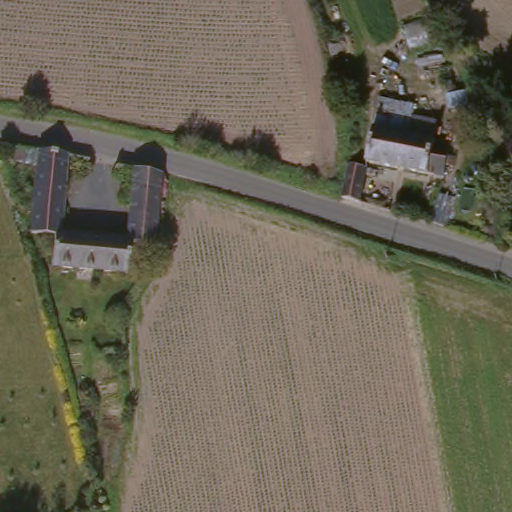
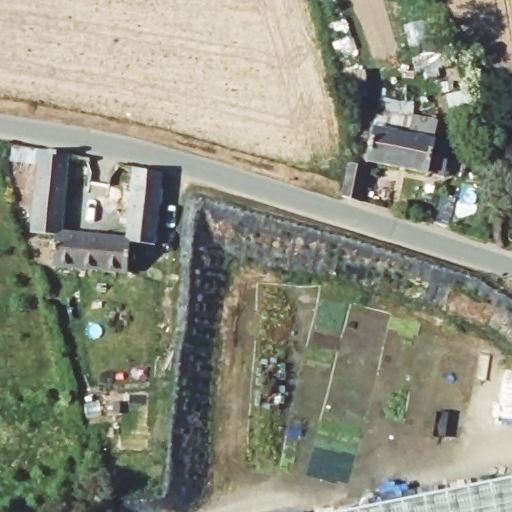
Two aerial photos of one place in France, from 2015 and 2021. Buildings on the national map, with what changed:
unchanged [(393,168),(367,163),(372,128),(399,133),(405,134),(407,135),(410,117),(439,122),(436,141),(448,143),(446,154),(452,155),(450,166),(444,165),(442,178),(400,169),(393,168)]
unchanged [(50,272),(54,244),(27,240),(38,156),(68,162),(59,239),(124,246),(133,175),(164,181),(158,251),(133,248),(130,280),(50,272)]
unchanged [(349,166),(365,170),(355,206),(339,202),(349,166)]
unchanged [(450,228),(429,222),(441,186),(462,194),(450,228)]
new [(337,512),(512,477),(512,512),(337,512)]

